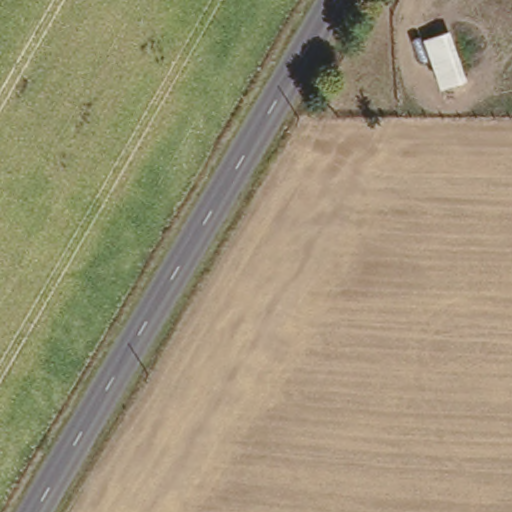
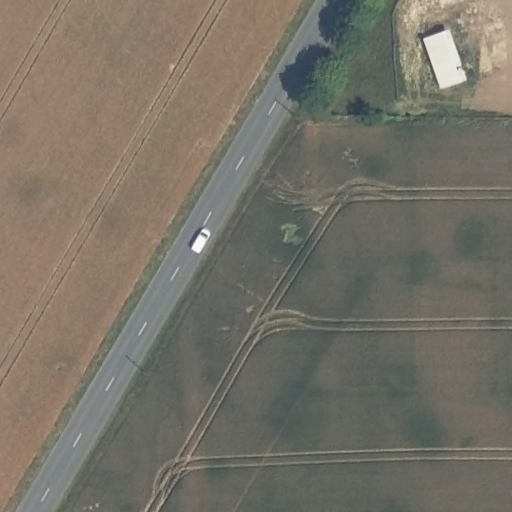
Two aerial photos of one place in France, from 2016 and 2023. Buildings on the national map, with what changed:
unchanged [(426,35),(449,24),(468,78),(443,86),(426,35)]

